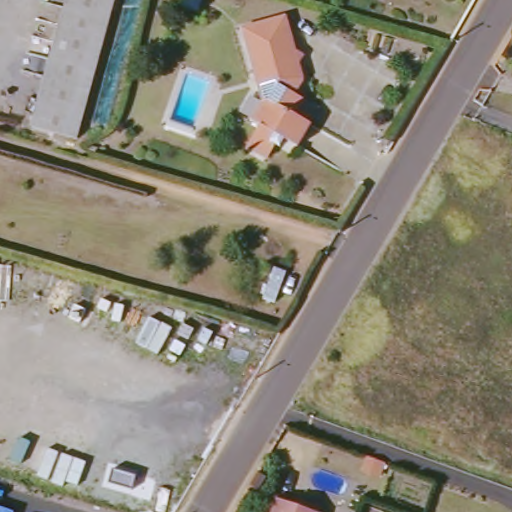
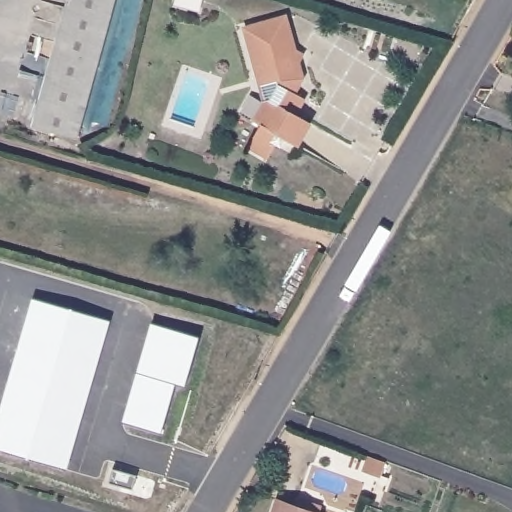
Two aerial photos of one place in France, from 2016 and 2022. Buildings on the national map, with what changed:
unchanged [(29,128),(68,0),(115,0),(79,112),(70,140),(63,138),(29,128)]
unchanged [(285,20),(294,52),(303,56),(297,67),(301,82),(294,95),(304,102),(295,119),(308,127),(294,150),(283,144),(279,151),(275,149),(268,160),(248,147),(260,127),(256,125),(280,87),(279,82),(261,87),(258,79),(246,30),(285,20)]
new [(112,326),(68,471),(0,451),(0,419),(34,303),(112,326)]
new [(200,341),(183,390),(176,388),(164,433),(119,420),(152,329),(200,341)]
unchanged [(261,483),(255,493),(246,488),(253,477),(261,483)]
unchanged [(296,512),(267,512),(269,503),(296,512)]

